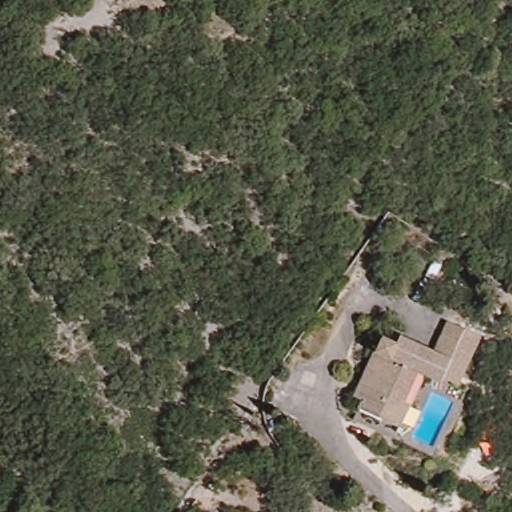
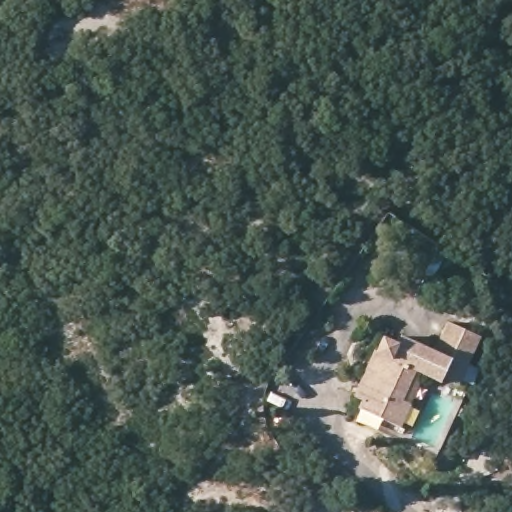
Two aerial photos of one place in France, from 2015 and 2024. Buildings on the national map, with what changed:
unchanged [(407,397),(414,401),(401,426),(355,402),(361,390),(356,387),(378,345),(383,348),(389,334),(401,341),(404,333),(434,348),(450,318),(486,335),(473,362),(464,380),(449,376),(422,370),(407,397)]

